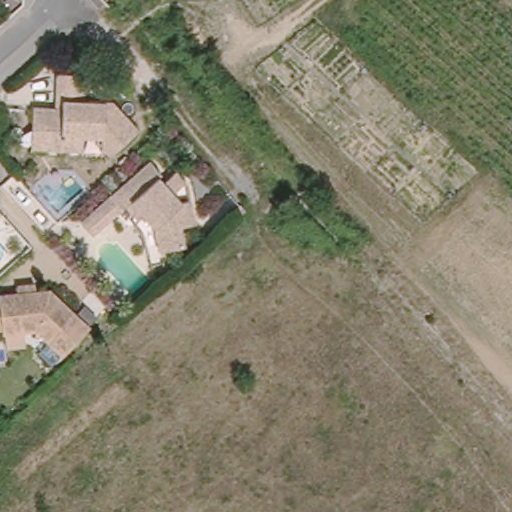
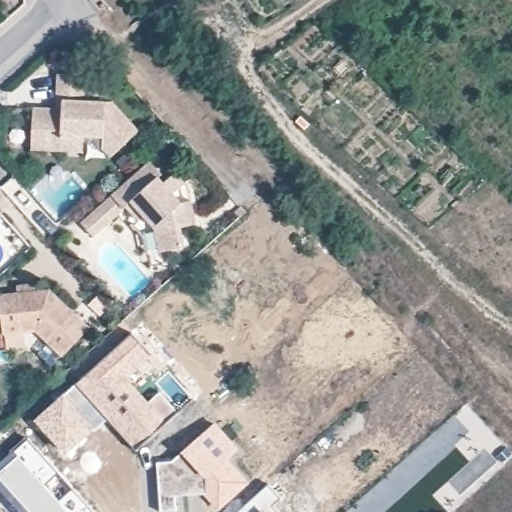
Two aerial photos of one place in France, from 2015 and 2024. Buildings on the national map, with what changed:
demolished [(39,102),(61,104),(63,69),(105,71),(103,96),(111,96),(109,134),(89,133),(89,149),(54,146),(55,125),(38,125),(39,102)]
new [(102,150),(102,137),(83,136),(82,151),(33,150),(34,105),(57,106),(56,75),(100,77),(99,101),(106,101),(115,102),(140,131),(111,156),(102,150)]
unchanged [(131,203),(99,232),(87,219),(155,156),(167,169),(164,172),(169,178),(181,167),(191,178),(179,189),(187,197),(197,195),(202,220),(186,222),(190,241),(165,247),(160,222),(150,211),(144,217),(131,203)]
unchanged [(240,219),(234,212),(241,206),(247,212),(240,219)]
unchanged [(2,215),(0,216),(0,212),(2,215)]
unchanged [(15,334),(13,331),(0,333),(0,304),(10,303),(9,295),(28,293),(27,285),(45,283),(46,291),(60,290),(99,327),(73,355),(46,331),(35,332),(36,347),(17,350),(15,334)]
new [(131,334),(152,357),(129,377),(149,400),(160,391),(175,410),(133,447),(107,420),(75,383),(131,334)]
new [(75,383),(107,420),(65,455),(34,420),(75,383)]
new [(172,458),(215,421),(239,448),(229,458),(249,482),(218,510),(204,495),(179,497),(179,511),(169,512),(159,512),(155,461),(172,458)]
new [(27,438),(95,512),(25,512),(0,483),(0,468),(27,438)]
new [(268,484),(279,497),(269,505),(275,512),(236,512),(268,484)]

